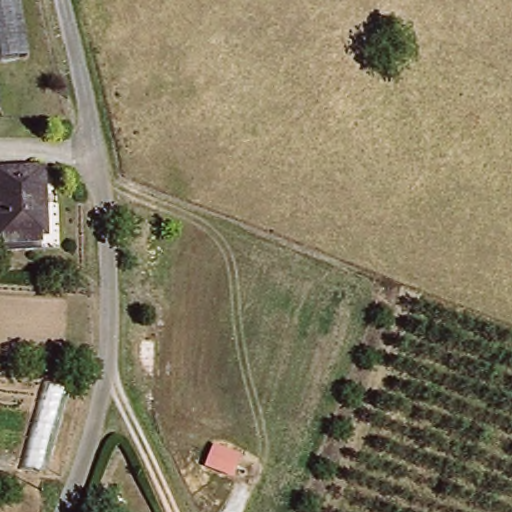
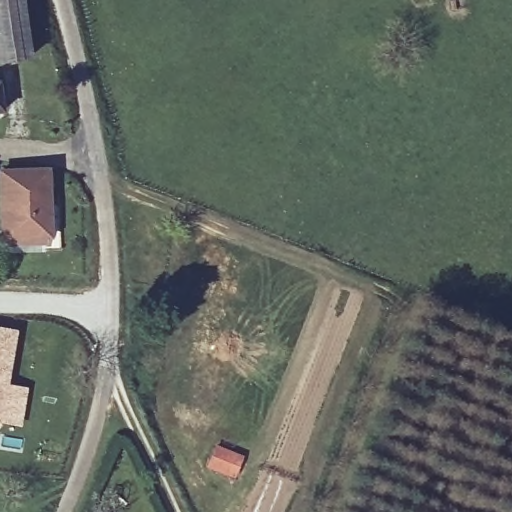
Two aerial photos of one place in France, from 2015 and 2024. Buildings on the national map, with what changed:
unchanged [(0,54),(0,0),(24,0),(29,51),(0,54)]
unchanged [(5,117),(0,117),(0,83),(2,83),(5,117)]
unchanged [(9,241),(1,181),(47,175),(55,235),(9,241)]
new [(25,390),(19,423),(0,420),(0,330),(13,332),(4,386),(25,390)]

